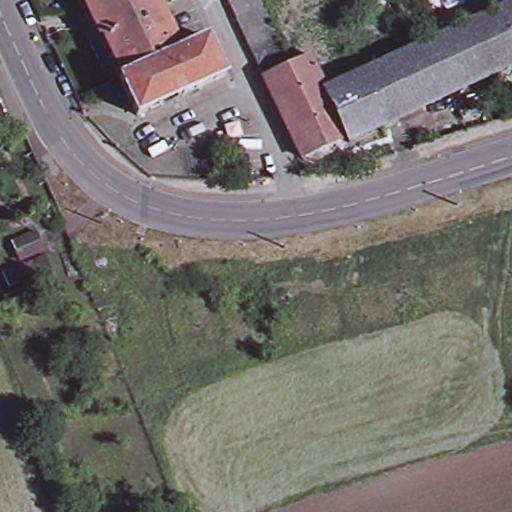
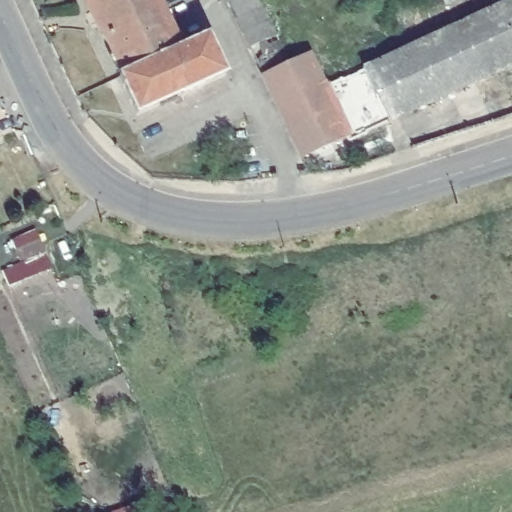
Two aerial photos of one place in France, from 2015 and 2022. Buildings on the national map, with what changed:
unchanged [(210,32),(230,72),(202,83),(204,88),(181,99),(180,95),(139,113),(120,74),(125,70),(93,0),(162,0),(183,44),(194,39),(192,33),(207,26),(210,32)]
unchanged [(240,23),(231,4),(229,0),(263,0),(267,10),(275,25),(281,39),(287,53),(293,64),(310,56),(325,85),(327,89),(337,111),(295,132),(267,77),(261,65),(254,50),(247,38),(240,23)]
unchanged [(512,0),(512,66),(479,82),(455,93),(354,143),(352,140),(337,111),(327,89),(325,85),(508,0),(512,0)]
unchanged [(477,138),(455,93),(479,82),(501,130),(477,138)]
unchanged [(295,132),(337,111),(352,140),(309,161),(295,132)]
unchanged [(35,231),(13,241),(5,223),(28,213),(35,231)]
unchanged [(3,268),(0,261),(0,254),(39,238),(44,251),(3,268)]

